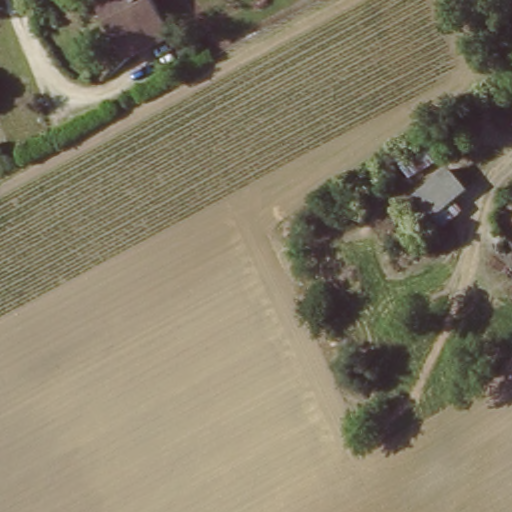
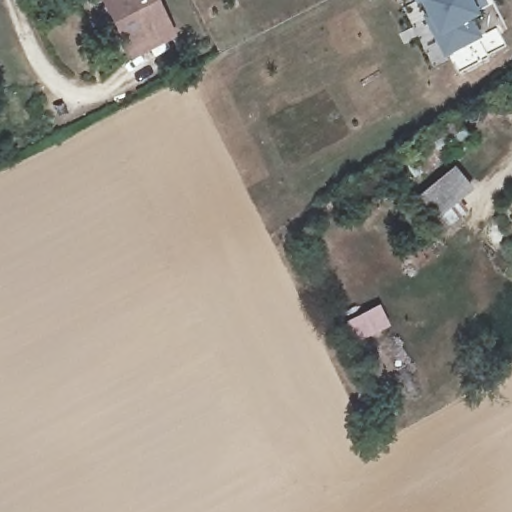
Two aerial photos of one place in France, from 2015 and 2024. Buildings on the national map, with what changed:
unchanged [(106,0),(150,0),(168,36),(126,57),(108,23),(116,19),(106,0)]
new [(432,26),(419,1),(416,2),(415,0),(485,0),(487,5),(476,11),(479,15),(472,19),(482,37),(444,57),(427,29),(432,26)]
unchanged [(450,160),(416,181),(402,151),(438,134),(450,160)]
unchanged [(448,236),(417,197),(457,165),(477,189),(463,200),(475,215),(448,236)]

